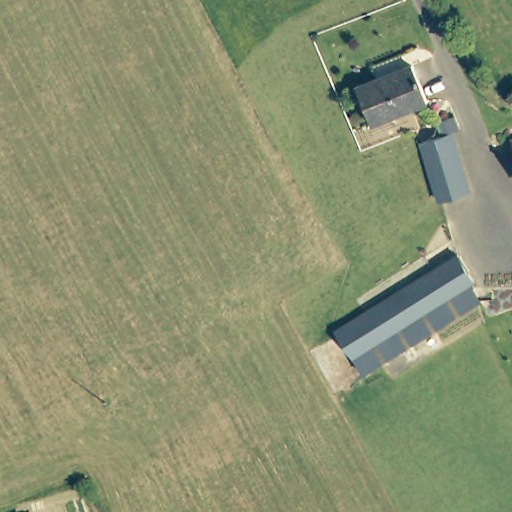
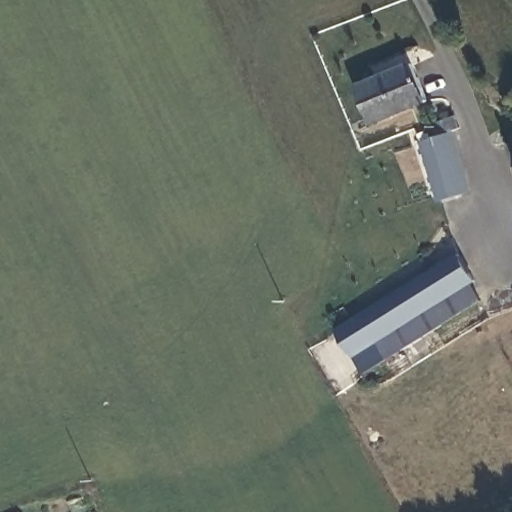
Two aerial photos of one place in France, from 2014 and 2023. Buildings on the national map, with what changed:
unchanged [(433,102),(380,128),(360,90),(381,80),(376,69),(410,53),(433,102)]
unchanged [(443,200),(424,144),(436,139),(431,124),(457,115),(463,131),(455,134),(475,189),(443,200)]
unchanged [(352,353),(352,354),(338,331),(376,305),(461,254),(474,272),(478,280),(458,291),(352,353)]
unchanged [(478,280),(488,296),(392,357),(365,373),(352,354),(352,353),(458,291),(478,280)]

